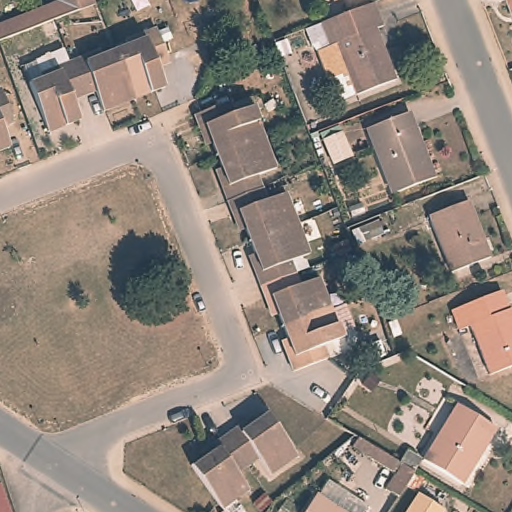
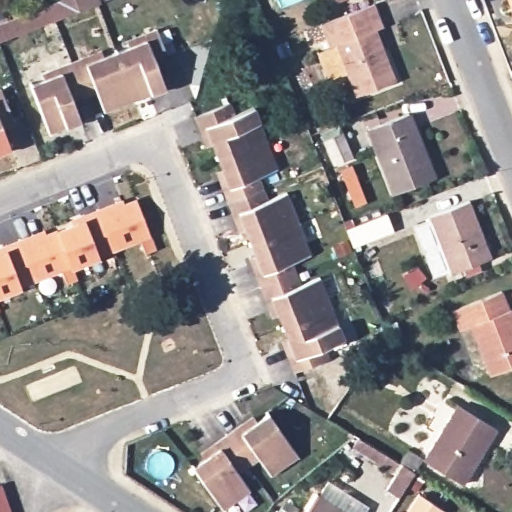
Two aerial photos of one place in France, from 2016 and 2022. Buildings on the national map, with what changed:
unchanged [(59,2),(58,0),(95,0),(97,4),(79,11),(55,21),(59,33),(47,37),(43,25),(0,42),(0,26),(59,2)]
unchanged [(512,0),(512,3),(511,0),(512,0)]
unchanged [(317,52),(329,48),(320,24),(373,3),(383,27),(376,30),(395,81),(355,96),(347,73),(327,80),(317,52)]
unchanged [(116,47),(129,42),(126,36),(156,24),(166,50),(154,55),(165,82),(134,94),(116,47)]
unchanged [(104,107),(92,79),(81,84),(71,58),(101,46),(102,52),(116,47),(134,94),(104,107)]
unchanged [(69,88),(80,116),(48,127),(30,80),(43,75),(41,69),(71,58),(81,84),(69,88)]
unchanged [(1,85),(11,111),(0,115),(0,85),(1,85)]
unchanged [(195,111),(229,98),(234,110),(252,102),(265,133),(217,151),(212,138),(206,140),(200,124),(195,111)]
unchanged [(433,179),(393,194),(367,129),(407,113),(433,179)]
unchanged [(9,142),(0,146),(0,119),(9,142)]
unchanged [(217,151),(265,133),(277,163),(257,171),(262,183),(227,196),(222,183),(216,167),(222,164),(217,151)]
unchanged [(324,141),(342,134),(351,157),(333,164),(324,141)]
unchanged [(233,210),(227,196),(262,183),(267,195),(286,188),(298,218),(250,237),(245,224),(239,226),(233,210)]
unchanged [(468,196),(490,253),(450,268),(428,212),(468,196)]
new [(5,249),(2,246),(44,229),(46,233),(56,229),(84,219),(80,215),(123,199),(124,203),(136,198),(157,251),(147,255),(141,241),(101,258),(74,269),(78,280),(67,285),(62,273),(24,288),(0,297),(0,251),(5,249)]
unchanged [(250,237),(298,218),(310,248),(290,256),(295,268),(261,281),(256,269),(249,253),(255,250),(250,237)]
unchanged [(384,235),(366,242),(361,227),(379,221),(384,235)]
unchanged [(333,246),(347,240),(352,251),(337,256),(333,246)]
unchanged [(266,295),(261,281),(295,268),(299,280),(320,273),(331,303),(282,321),(278,309),(272,311),(266,295)]
unchanged [(511,304),(512,308),(512,362),(490,371),(471,321),(459,326),(452,306),(501,286),(508,305),(511,304)]
unchanged [(288,334),(282,321),(331,303),(342,333),(322,340),(327,353),(293,366),(288,353),(282,337),(288,334)]
unchanged [(387,324),(396,321),(402,335),(393,339),(387,324)]
unchanged [(367,350),(381,345),(385,356),(371,361),(367,350)]
unchanged [(462,485),(422,460),(457,405),(496,429),(462,485)]
unchanged [(252,413),(257,418),(268,410),(297,451),(270,470),(258,452),(247,460),(227,431),(238,423),(252,413)]
unchanged [(237,467),(249,485),(222,504),(192,462),(205,454),(201,449),(215,439),(227,431),(247,460),(237,467)]
unchanged [(395,474),(352,447),(358,438),(399,463),(407,450),(422,460),(414,472),(398,497),(386,490),(395,474)]
unchanged [(312,494),(314,495),(323,481),(342,493),(363,507),(360,512),(300,512),(312,494)]
unchanged [(439,507),(436,512),(398,512),(413,489),(439,507)]

